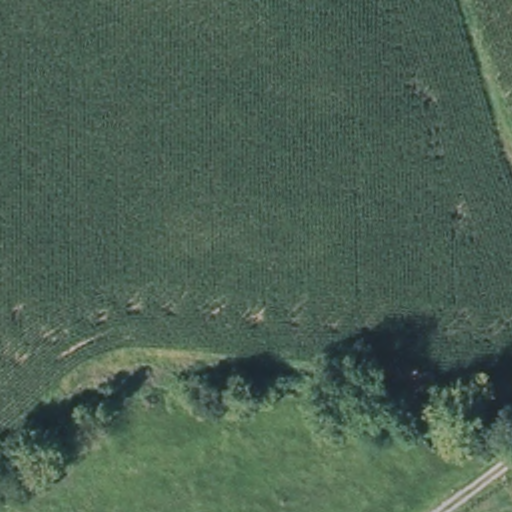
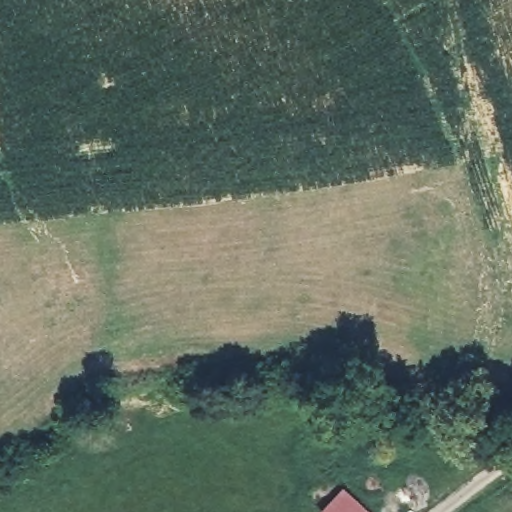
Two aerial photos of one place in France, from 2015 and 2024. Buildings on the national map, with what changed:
new [(319,512),(318,512),(343,488),(370,512),(319,512)]

